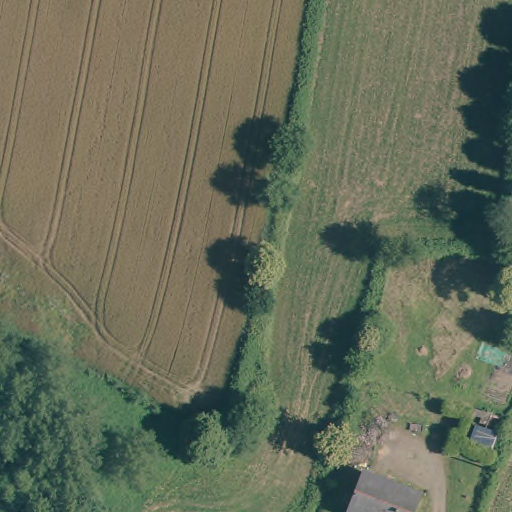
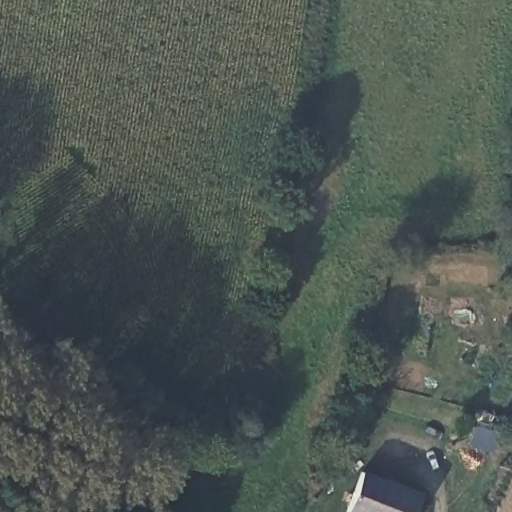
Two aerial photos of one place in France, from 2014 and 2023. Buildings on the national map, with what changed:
unchanged [(427,495),(420,512),(351,512),(365,471),(427,495)]

